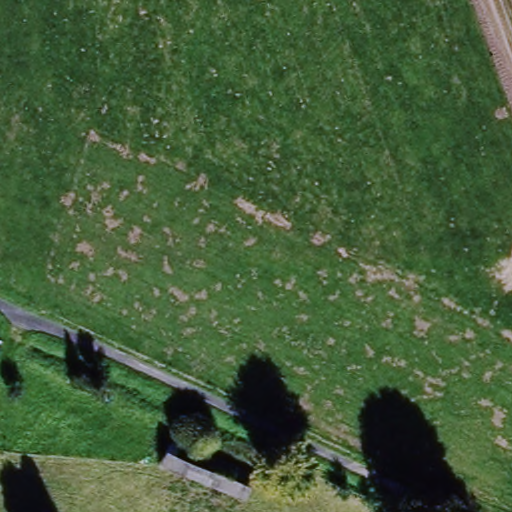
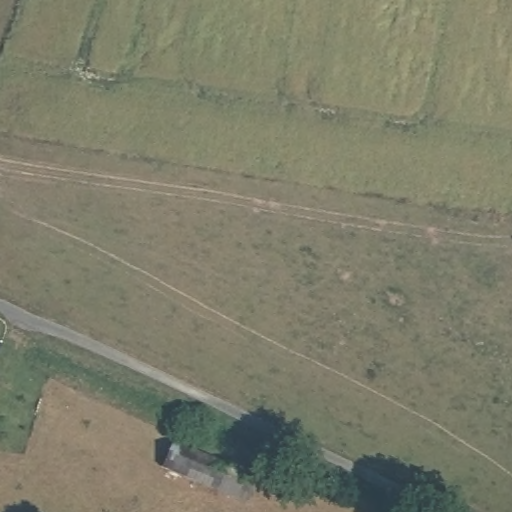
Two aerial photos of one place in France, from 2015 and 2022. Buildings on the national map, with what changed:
unchanged [(257,476),(248,509),(162,479),(170,444),(257,476)]

